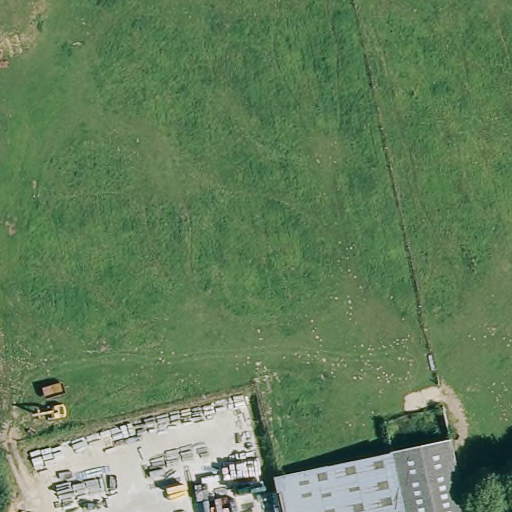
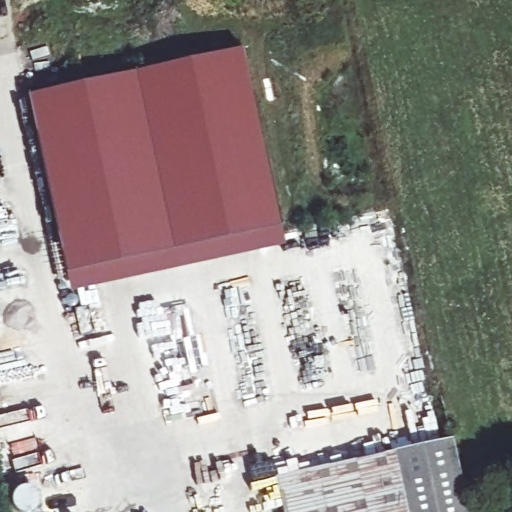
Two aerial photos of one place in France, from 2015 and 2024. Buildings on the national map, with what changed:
new [(244,47),(287,246),(74,290),(28,96),(244,47)]
unchanged [(468,512),(408,512),(395,455),(453,443),(468,512)]
unchanged [(408,512),(279,512),(272,481),(395,455),(408,512)]

